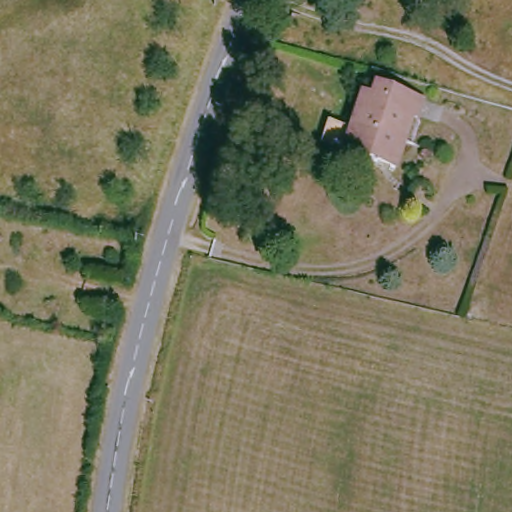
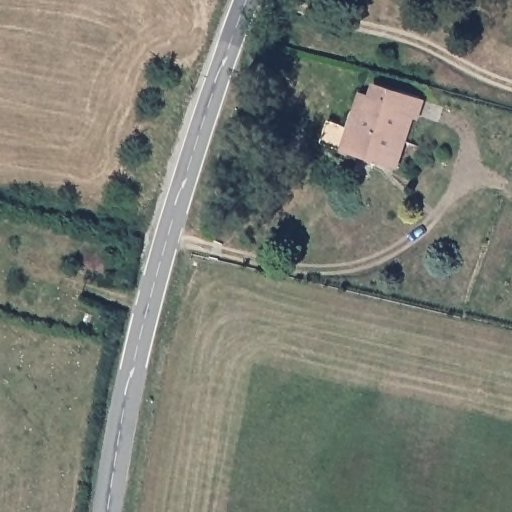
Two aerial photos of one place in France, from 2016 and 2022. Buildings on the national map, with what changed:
unchanged [(342,147),(362,88),(371,91),(375,79),(427,96),(420,116),(416,114),(398,166),(342,147)]

